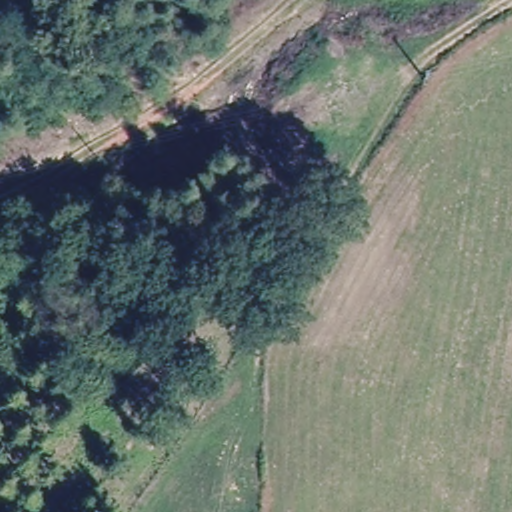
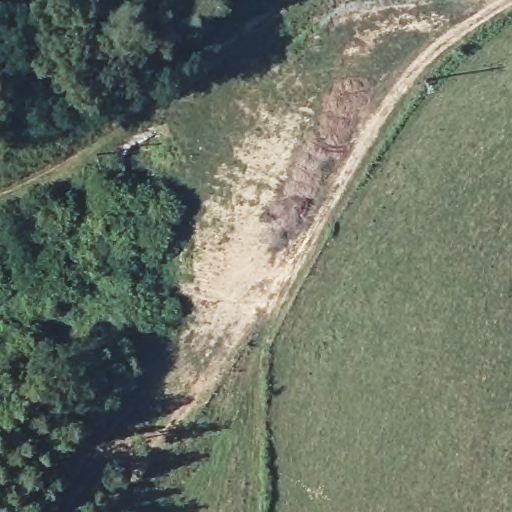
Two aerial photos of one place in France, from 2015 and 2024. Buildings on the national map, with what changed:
[]

